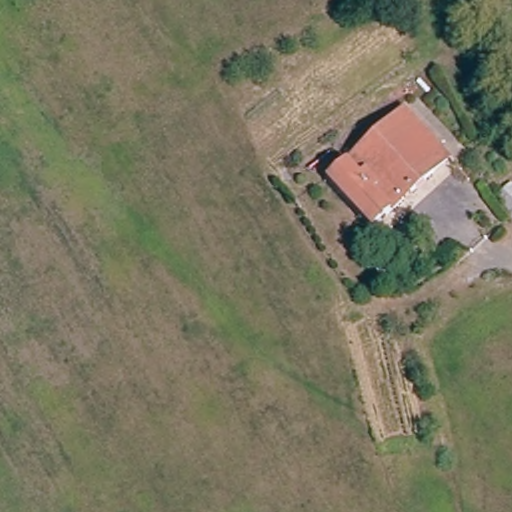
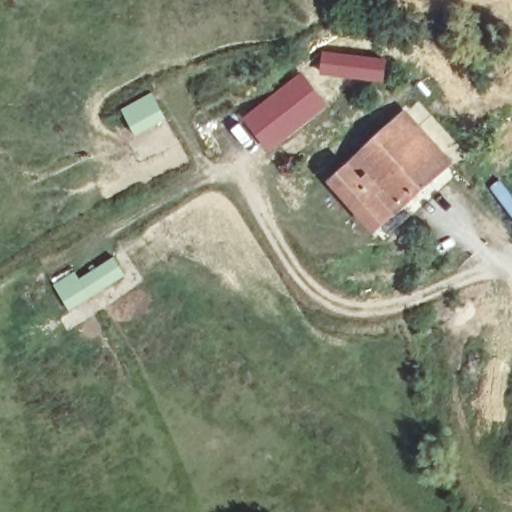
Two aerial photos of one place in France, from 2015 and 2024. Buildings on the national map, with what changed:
new [(321,49),(388,56),(384,82),(318,74),(321,49)]
new [(302,70),(329,105),(269,151),(242,116),(302,70)]
unchanged [(377,234),(334,186),(409,117),(452,165),(377,234)]
new [(72,310),(56,285),(76,272),(81,279),(115,257),(127,275),(72,310)]

